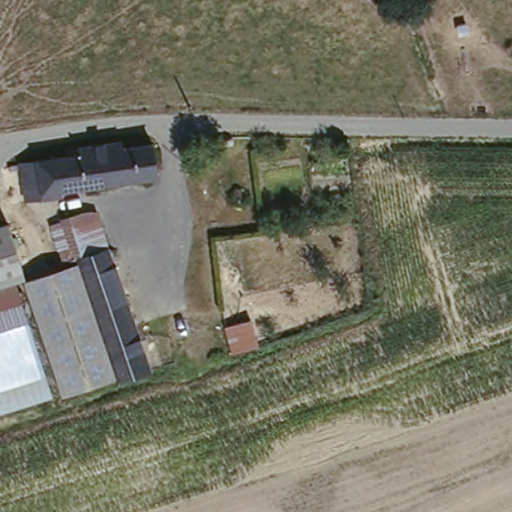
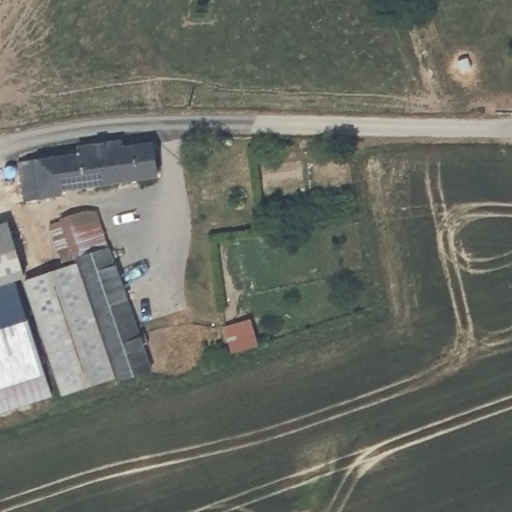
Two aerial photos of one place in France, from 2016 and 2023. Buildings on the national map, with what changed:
unchanged [(90,159),(90,150),(131,145),(133,153),(160,149),(164,178),(72,192),(73,200),(36,205),(31,168),(90,159)]
unchanged [(41,267),(69,259),(64,245),(56,219),(70,215),(69,212),(98,203),(111,244),(82,253),(119,371),(78,384),(41,267)]
unchanged [(26,272),(19,274),(0,280),(0,220),(9,218),(26,272)]
unchanged [(119,371),(82,253),(111,244),(152,364),(121,374),(119,371)]
unchanged [(48,367),(0,382),(0,280),(19,274),(48,367)]
unchanged [(229,356),(221,329),(246,324),(251,349),(229,356)]

